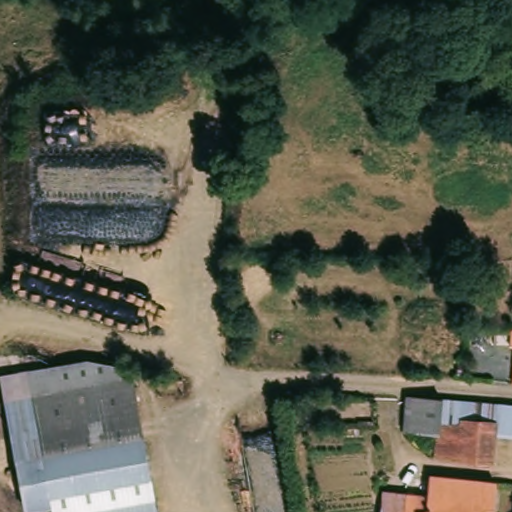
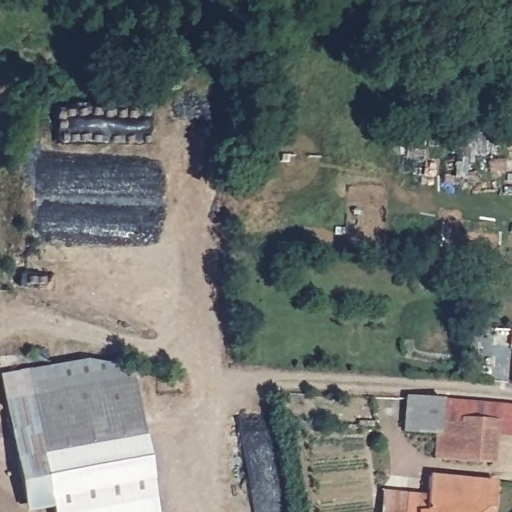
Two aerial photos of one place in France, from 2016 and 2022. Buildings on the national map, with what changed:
unchanged [(507,345),(509,329),(512,330),(512,345),(507,345)]
unchanged [(54,505),(26,510),(15,450),(0,370),(93,355),(123,362),(125,376),(135,374),(145,427),(158,495),(160,512),(55,512),(54,505)]
unchanged [(512,402),(512,428),(489,425),(488,459),(434,456),(435,430),(404,426),(408,393),(493,400),(512,402)]
unchanged [(419,511),(421,498),(422,487),(443,487),(444,474),(449,475),(506,477),(503,503),(493,503),(492,512),(401,512),(419,511)]

